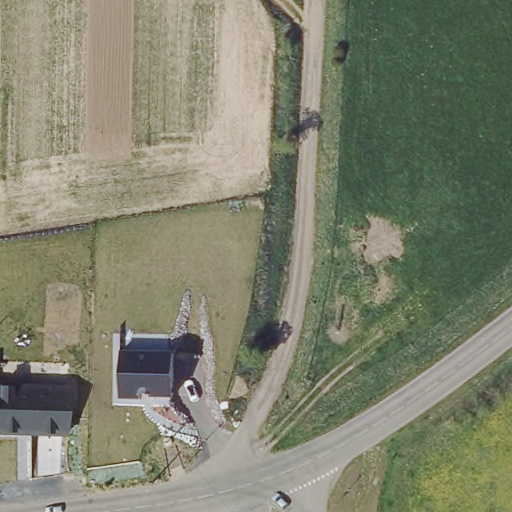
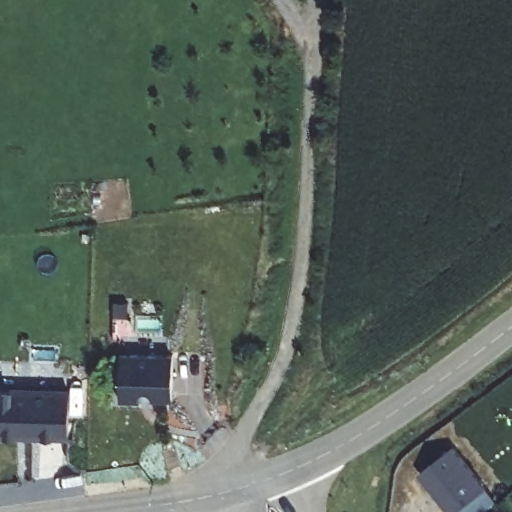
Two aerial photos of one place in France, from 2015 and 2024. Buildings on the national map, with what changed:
unchanged [(169,352),(169,397),(118,396),(118,351),(169,352)]
unchanged [(65,438),(0,437),(0,387),(68,391),(65,438)]
new [(499,501),(485,512),(452,512),(422,474),(457,447),(499,501)]

